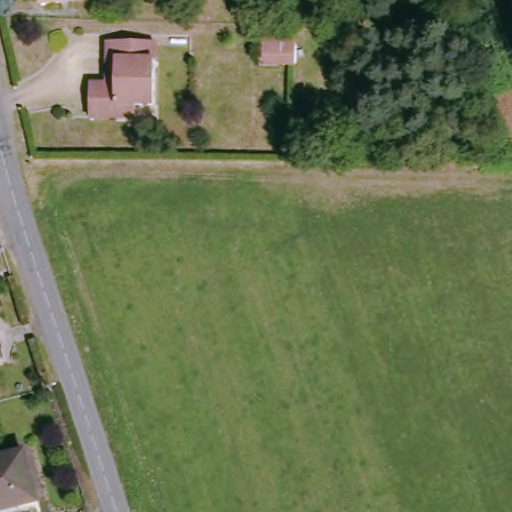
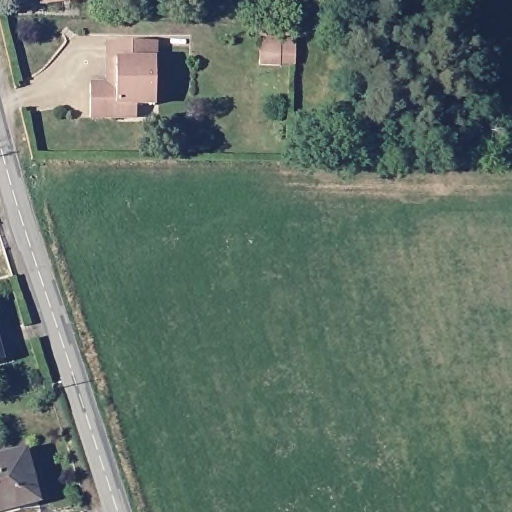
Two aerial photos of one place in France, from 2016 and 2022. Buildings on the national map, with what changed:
unchanged [(41,6),(41,0),(81,0),(81,1),(41,6)]
unchanged [(256,67),(256,47),(257,40),(278,40),(278,48),(276,68),(256,67)]
unchanged [(118,121),(88,120),(88,85),(119,86),(119,64),(110,64),(110,44),(158,45),(156,108),(136,107),(136,121),(118,121)]
unchanged [(37,504),(13,510),(12,503),(0,506),(0,458),(24,452),(37,504)]

